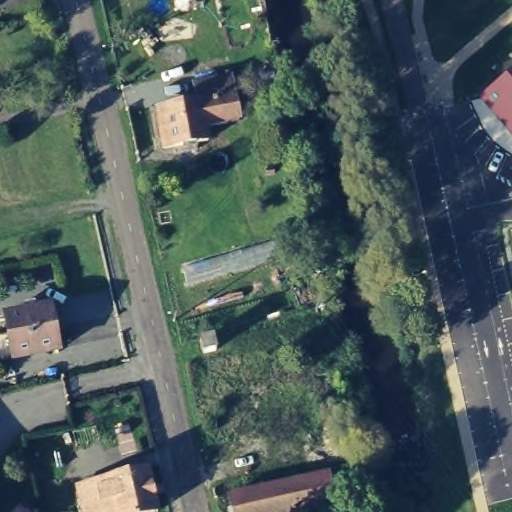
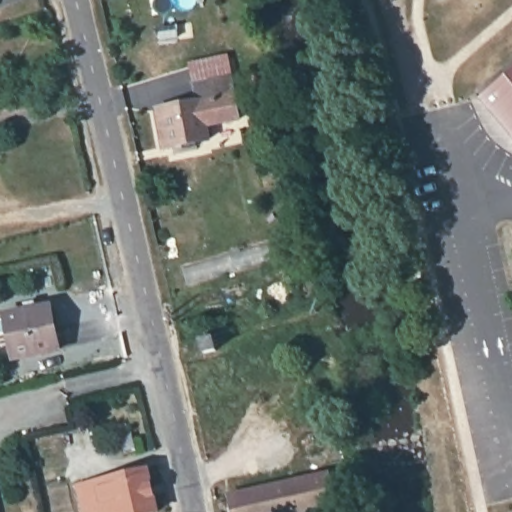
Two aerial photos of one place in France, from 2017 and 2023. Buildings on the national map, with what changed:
unchanged [(512,65),(512,127),(480,92),(512,65)]
unchanged [(160,106),(180,102),(200,97),(196,78),(230,72),(239,116),(205,123),(208,138),(188,142),(168,147),(160,106)]
unchanged [(57,346),(10,356),(1,311),(49,302),(57,346)]
unchanged [(161,507),(139,512),(90,512),(82,479),(152,464),(161,507)]
unchanged [(332,498),(269,512),(233,512),(228,489),(325,468),(332,498)]

